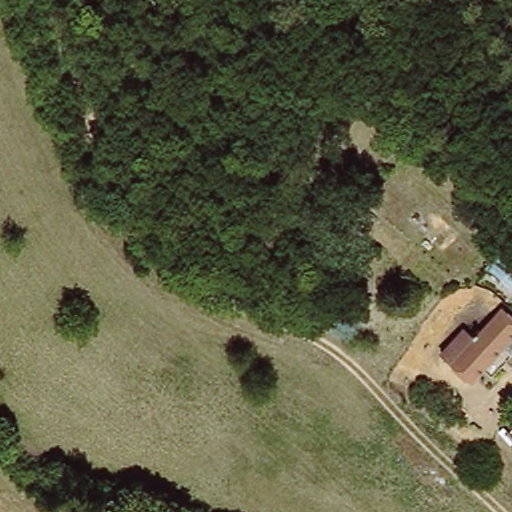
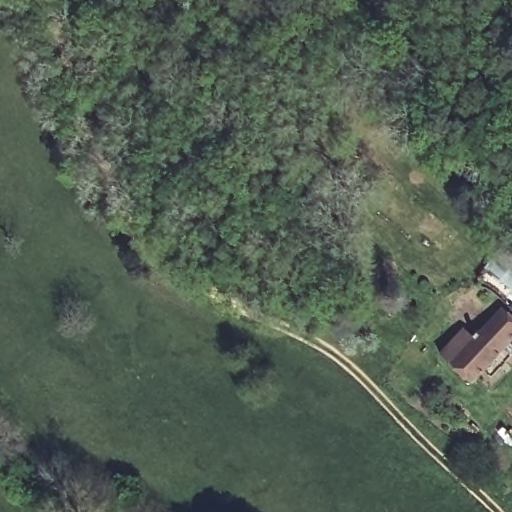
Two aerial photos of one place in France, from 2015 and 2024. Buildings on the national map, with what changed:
unchanged [(443,271),(452,281),(441,291),(432,280),(443,271)]
unchanged [(500,310),(512,323),(512,340),(467,385),(437,355),(470,322),(478,332),(500,310)]

